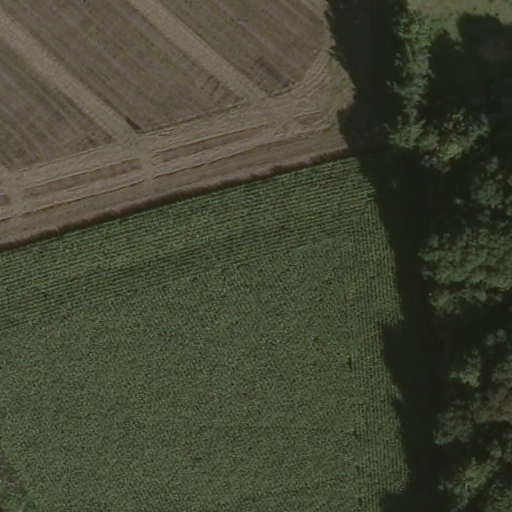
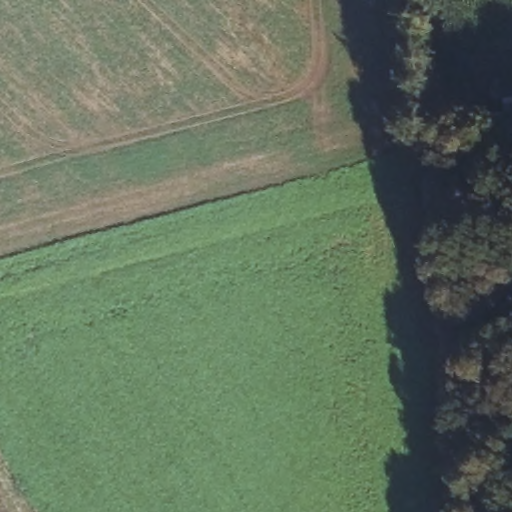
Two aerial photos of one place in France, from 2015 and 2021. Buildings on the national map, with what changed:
unchanged [(496,58),(512,56),(512,100),(501,101),(496,58)]

